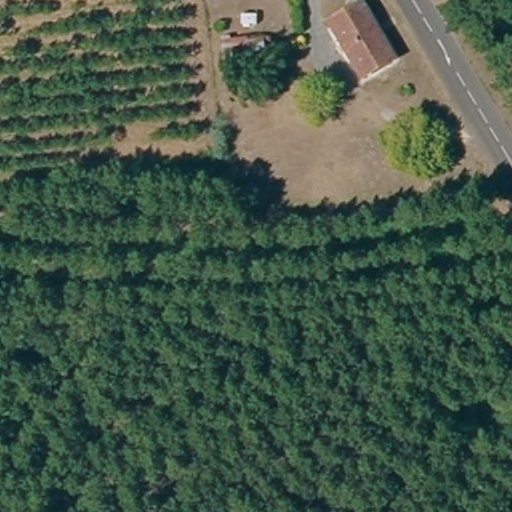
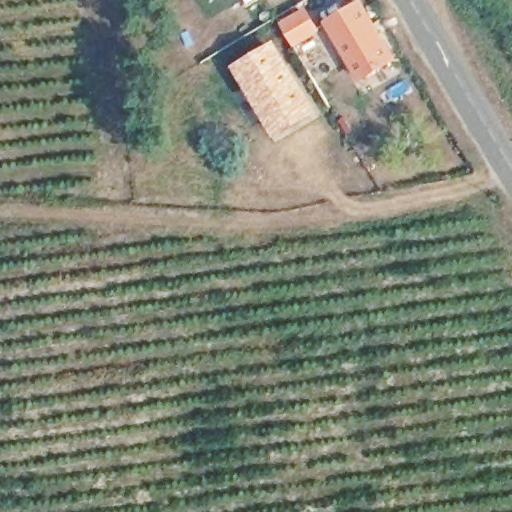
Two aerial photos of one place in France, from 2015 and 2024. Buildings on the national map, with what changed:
unchanged [(389,60),(358,80),(324,25),(355,5),(389,60)]
new [(275,140),(233,68),(276,42),(319,113),(275,140)]

